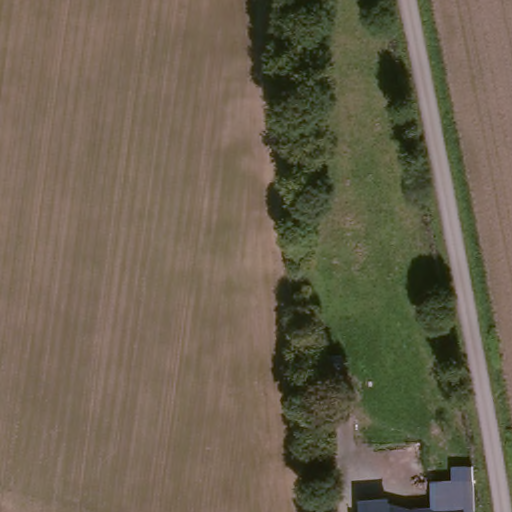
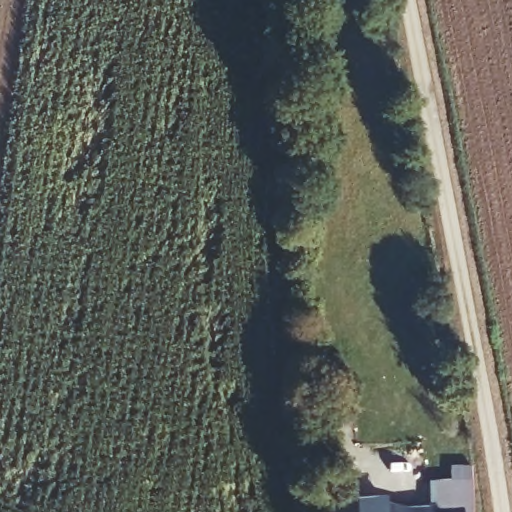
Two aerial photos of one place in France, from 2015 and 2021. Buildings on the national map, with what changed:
unchanged [(455,483),(455,468),(478,467),(478,512),(362,512),(362,503),(391,502),(391,511),(434,509),(434,484),(455,483)]

